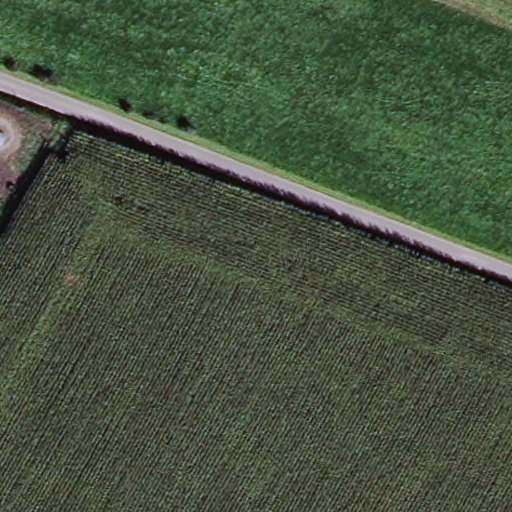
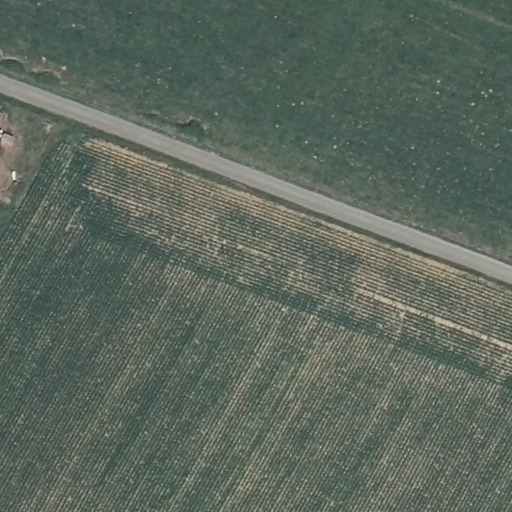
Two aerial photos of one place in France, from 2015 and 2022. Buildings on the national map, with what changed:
[]

